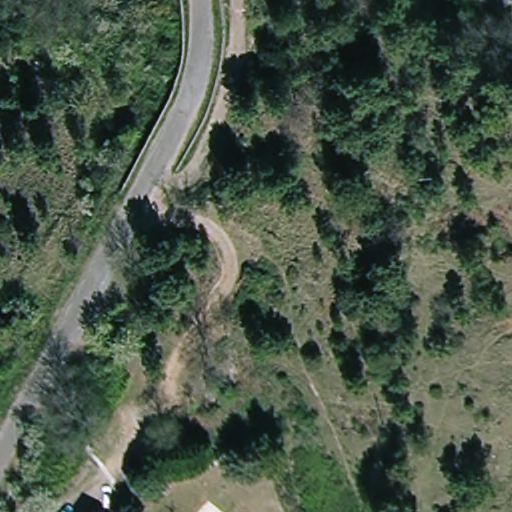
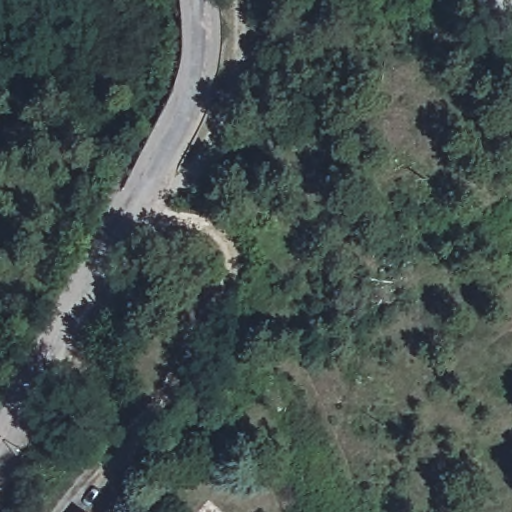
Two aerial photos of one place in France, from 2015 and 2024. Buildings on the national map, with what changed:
unchanged [(85,504),(97,512),(80,512),(85,504)]

